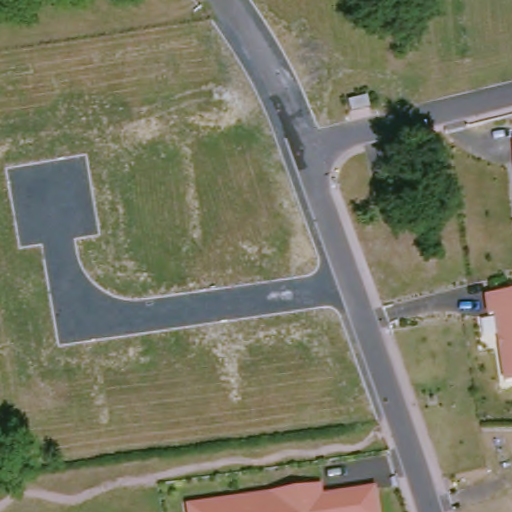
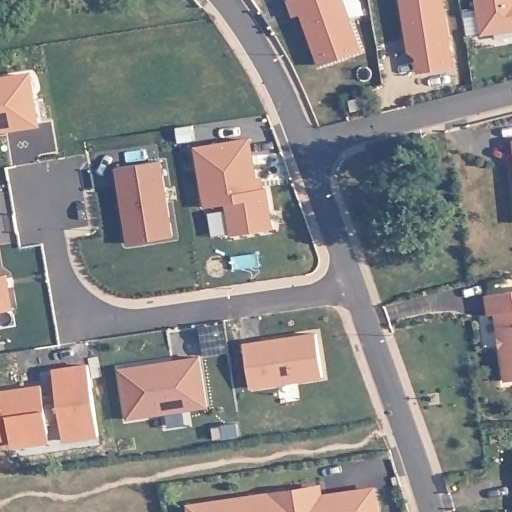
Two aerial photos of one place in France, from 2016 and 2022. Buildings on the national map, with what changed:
new [(362,50),(318,65),(301,15),(292,17),(287,0),(344,0),(362,50)]
new [(459,72),(426,78),(424,62),(420,62),(414,58),(410,36),(417,35),(415,24),(409,25),(405,0),(447,0),(459,72)]
new [(512,36),(490,40),(483,0),(512,0),(512,36)]
new [(251,141),(258,187),(266,186),(274,231),(233,237),(228,205),(207,209),(198,150),(251,141)]
new [(163,162),(174,239),(130,245),(118,169),(163,162)]
new [(0,277),(7,276),(13,310),(0,313),(0,277)]
unchanged [(495,318),(489,318),(487,298),(512,295),(512,384),(505,385),(495,318)]
new [(317,336),(324,378),(251,390),(245,346),(317,336)]
new [(145,367),(146,374),(175,370),(174,362),(201,359),(208,408),(128,420),(121,370),(145,367)]
new [(45,403),(58,402),(54,371),(89,366),(99,436),(64,441),(61,422),(48,424),(49,433),(0,440),(0,394),(42,387),(45,403)]
unchanged [(330,495),(332,505),(384,497),(386,512),(220,512),(296,500),(330,495)]

